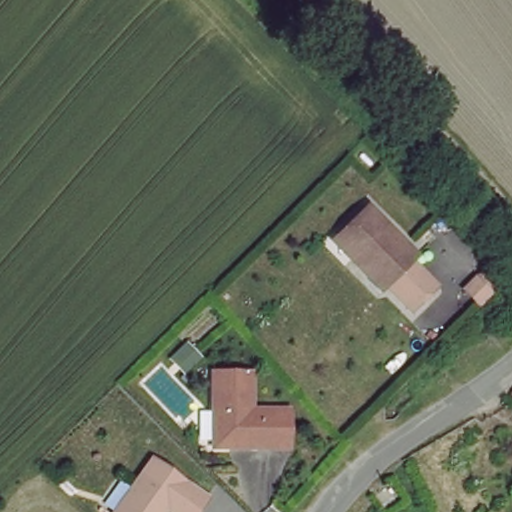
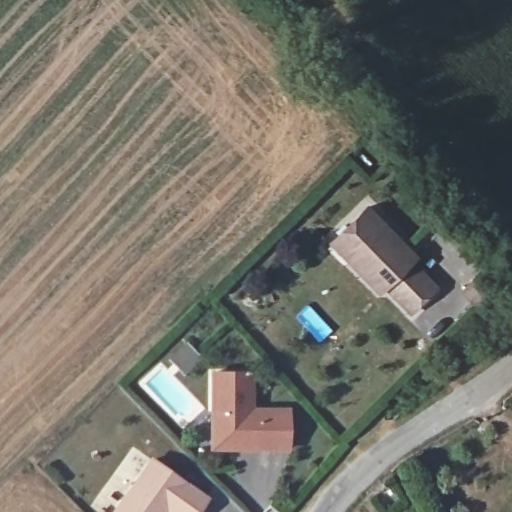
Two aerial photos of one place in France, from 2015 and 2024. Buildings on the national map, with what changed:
unchanged [(389,283),(383,287),(335,238),(370,203),(420,254),(414,260),(439,285),(414,308),(389,283)]
unchanged [(212,372),(252,372),(252,410),(288,411),(287,450),(211,448),(212,372)]
unchanged [(207,498),(197,512),(168,512),(165,510),(163,512),(112,512),(150,457),(207,498)]

